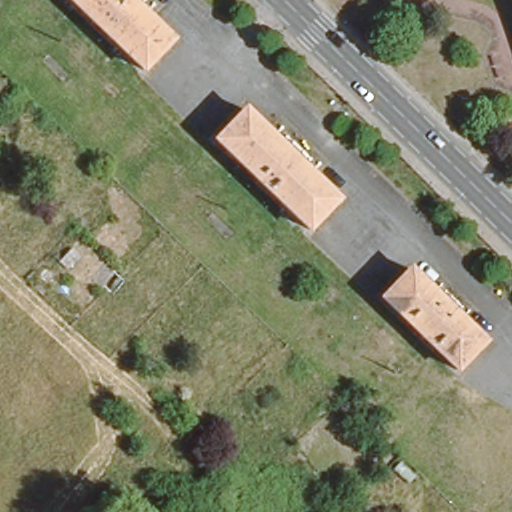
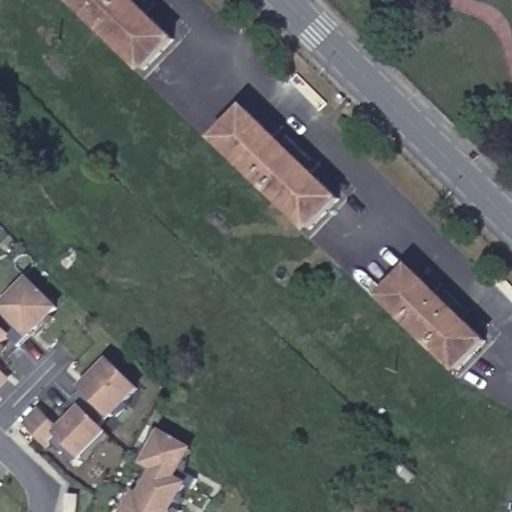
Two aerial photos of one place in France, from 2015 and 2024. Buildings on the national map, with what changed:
unchanged [(140,70),(68,0),(135,0),(171,36),(140,70)]
unchanged [(336,198),(308,228),(214,139),(243,108),(336,198)]
unchanged [(483,339),(456,369),(378,296),(407,267),(483,339)]
new [(57,308),(19,346),(9,335),(0,345),(0,309),(30,279),(57,308)]
new [(99,426),(109,434),(86,458),(71,444),(62,452),(50,442),(47,444),(26,423),(40,410),(60,431),(82,409),(72,398),(110,361),(137,389),(99,426)]
new [(0,386),(0,369),(8,378),(0,386)]
new [(153,464),(142,459),(158,429),(191,448),(180,468),(199,478),(193,488),(185,484),(172,505),(183,511),(182,512),(126,512),(153,464)]
new [(80,494),(78,512),(67,512),(68,493),(80,494)]

